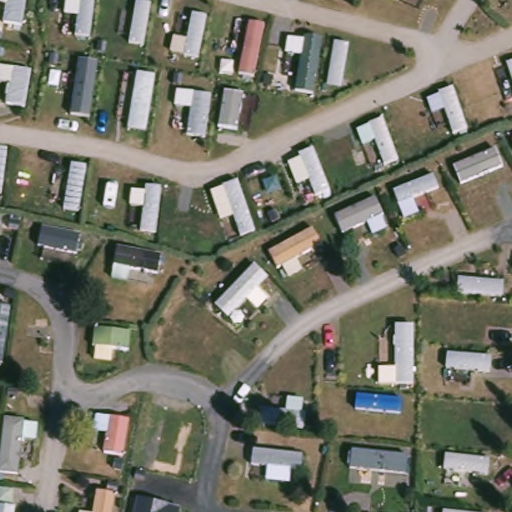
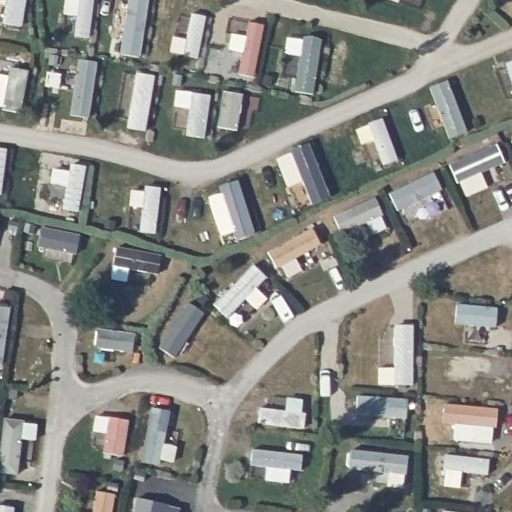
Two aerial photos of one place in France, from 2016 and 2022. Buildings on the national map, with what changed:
unchanged [(182,512),(135,512),(138,496),(182,508),(182,512)]

